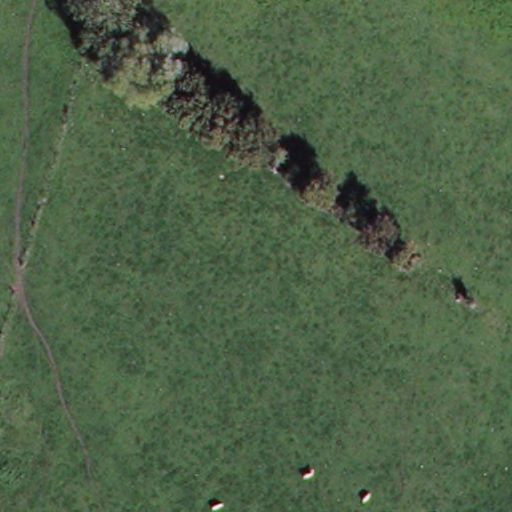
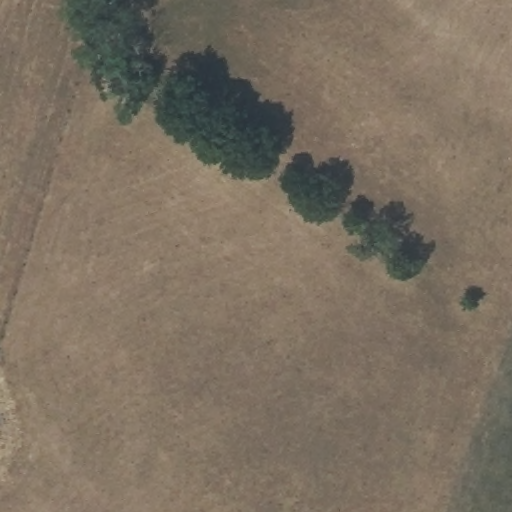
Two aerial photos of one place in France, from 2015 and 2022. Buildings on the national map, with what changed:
[]

